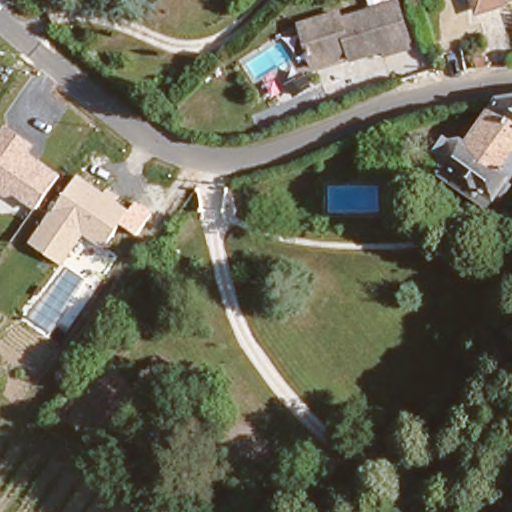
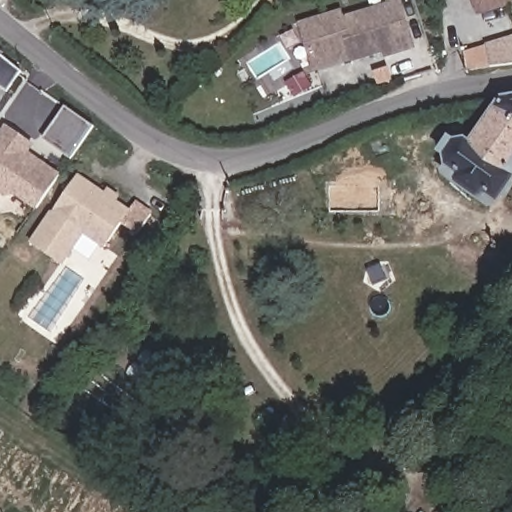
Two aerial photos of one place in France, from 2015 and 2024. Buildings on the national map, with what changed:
unchanged [(482,0),(512,0),(484,7),(482,0)]
unchanged [(316,63),(315,56),(305,14),(345,5),(350,21),(403,8),(412,43),(393,47),(391,40),(380,43),(353,49),(350,41),(340,43),(334,51),(336,59),(316,63)]
new [(463,52),(512,37),(512,66),(470,73),(463,52)]
new [(7,92),(0,88),(0,54),(21,71),(7,92)]
unchanged [(445,171),(452,161),(448,151),(461,134),(470,135),(505,90),(512,90),(512,176),(500,193),(493,205),(445,171)]
new [(65,108),(93,127),(70,159),(43,140),(65,108)]
unchanged [(14,196),(5,197),(0,194),(0,133),(7,123),(34,142),(27,150),(61,174),(34,208),(14,196)]
unchanged [(138,236),(122,223),(103,250),(83,235),(62,265),(30,241),(82,172),(107,192),(111,187),(121,196),(120,199),(130,208),(137,196),(157,211),(138,236)]

